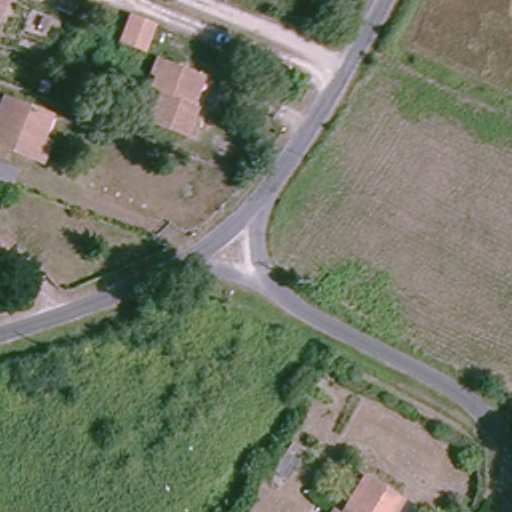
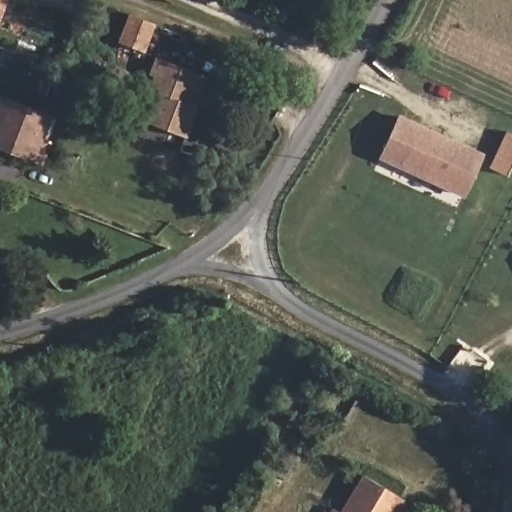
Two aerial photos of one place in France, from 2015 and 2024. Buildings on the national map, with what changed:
unchanged [(0,5),(0,0),(2,0),(0,5)]
unchanged [(142,50),(117,40),(130,9),(155,20),(142,50)]
unchanged [(191,99),(204,105),(190,140),(152,125),(162,96),(154,92),(160,76),(150,70),(159,51),(201,69),(191,99)]
unchanged [(39,160),(24,152),(0,142),(0,124),(12,96),(43,109),(34,130),(50,136),(39,160)]
new [(484,154),(464,197),(378,157),(398,114),(484,154)]
unchanged [(10,184),(0,180),(0,159),(16,165),(10,184)]
unchanged [(405,493),(397,512),(346,512),(362,473),(405,493)]
unchanged [(340,512),(333,512),(335,510),(340,512)]

